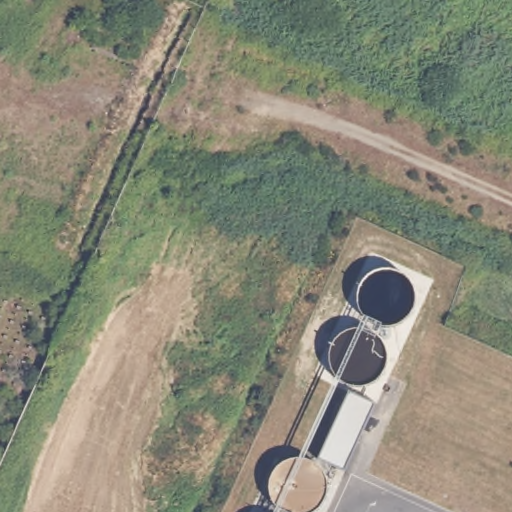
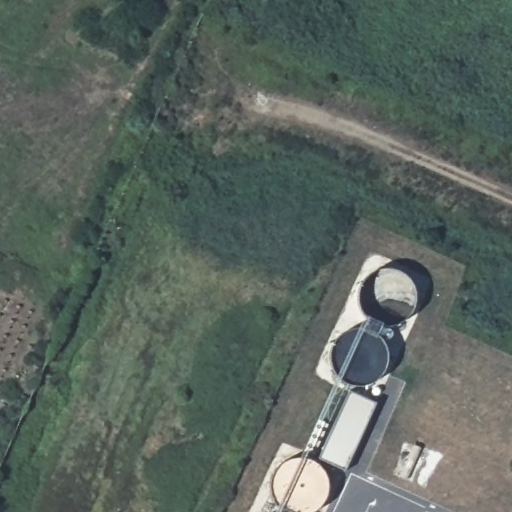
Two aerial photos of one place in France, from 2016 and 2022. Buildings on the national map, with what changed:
unchanged [(343,470),(318,460),(350,392),(372,403),(343,470)]

